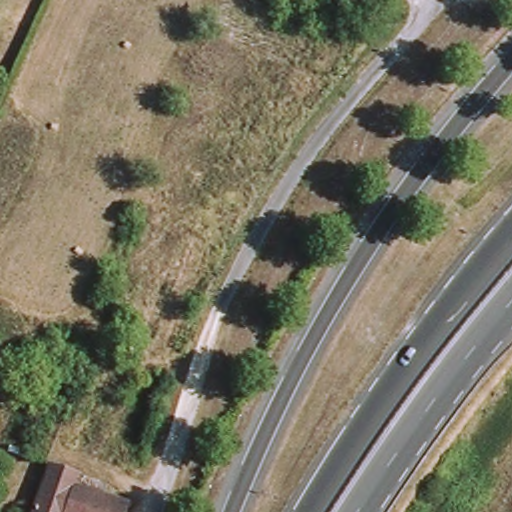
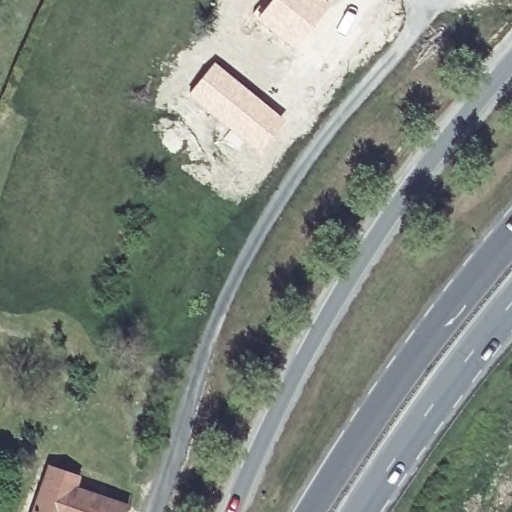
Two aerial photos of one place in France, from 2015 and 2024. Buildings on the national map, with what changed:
new [(269,0),(325,0),(329,3),(293,48),(255,17),(269,0)]
new [(214,60),(286,120),(258,153),(187,93),(214,60)]
unchanged [(101,487),(97,500),(124,508),(122,512),(30,512),(44,469),(101,487)]

